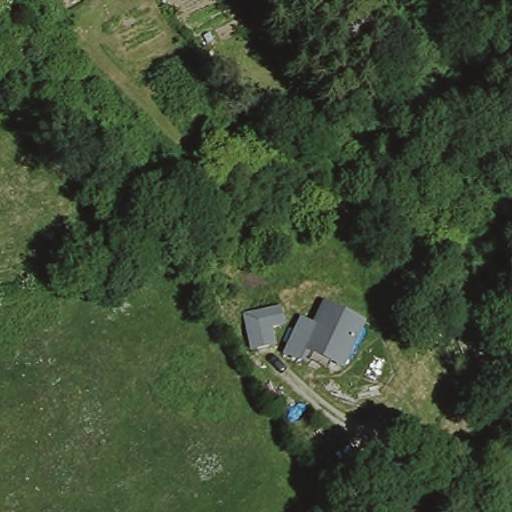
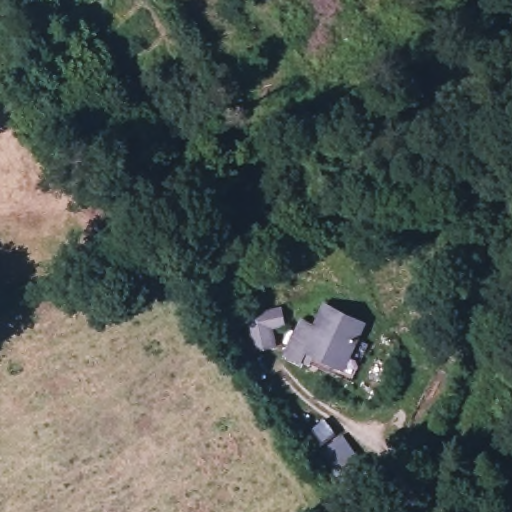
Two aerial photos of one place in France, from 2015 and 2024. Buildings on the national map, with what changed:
unchanged [(435,310),(421,316),(405,277),(442,261),(457,295),(459,299),(435,310)]
unchanged [(297,318),(315,324),(323,305),(362,321),(343,372),(305,359),(301,366),(281,355),(297,318)]
unchanged [(240,314),(281,307),(285,327),(273,331),(275,347),(247,349),(240,314)]

